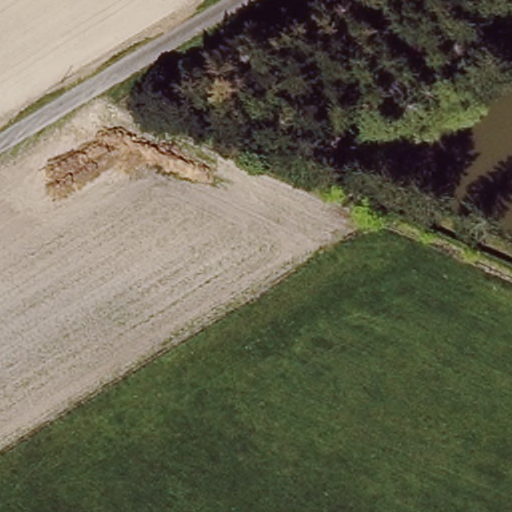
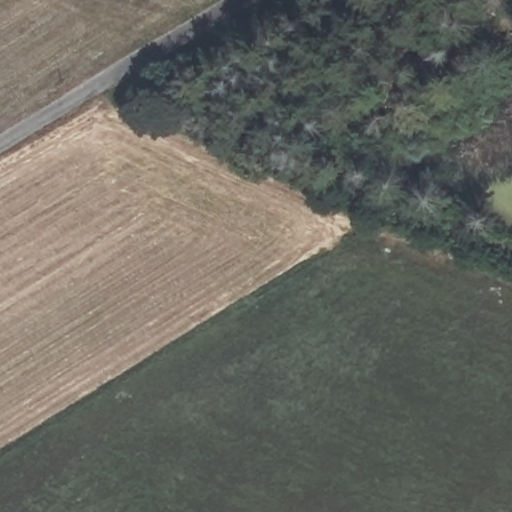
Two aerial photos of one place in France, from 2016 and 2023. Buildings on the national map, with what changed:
unchanged [(461,34),(452,18),(491,0),(503,0),(510,13),(461,34)]

